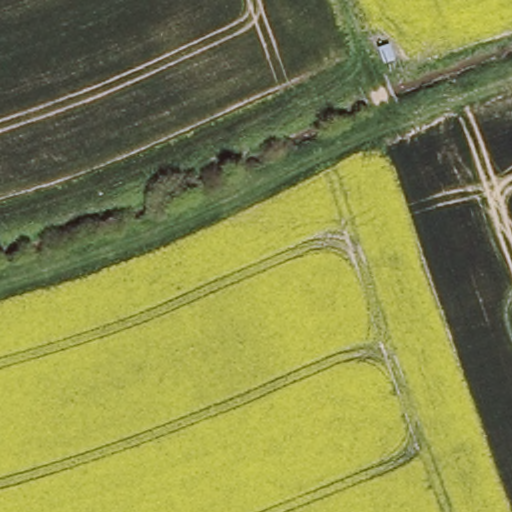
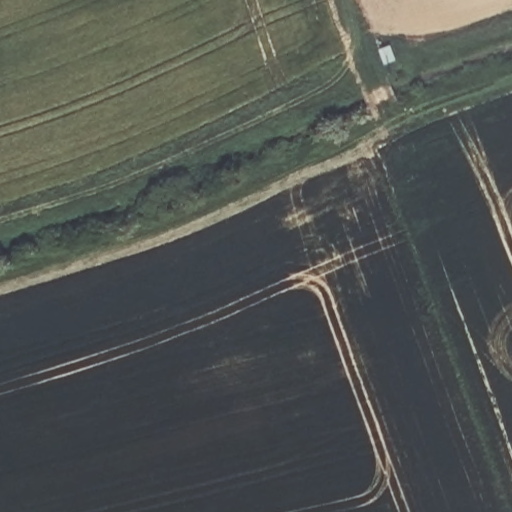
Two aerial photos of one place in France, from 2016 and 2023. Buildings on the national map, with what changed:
unchanged [(383,64),(379,50),(389,46),(394,60),(383,64)]

